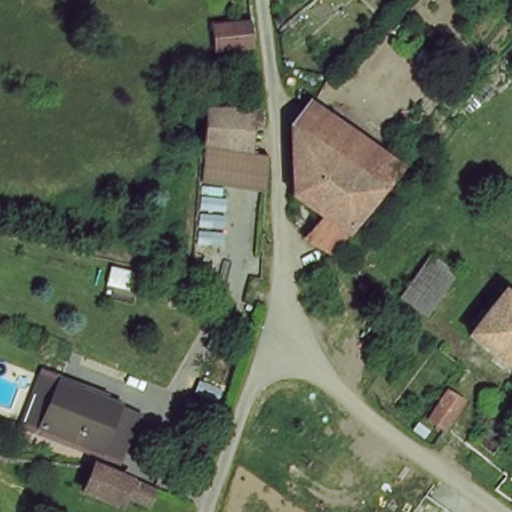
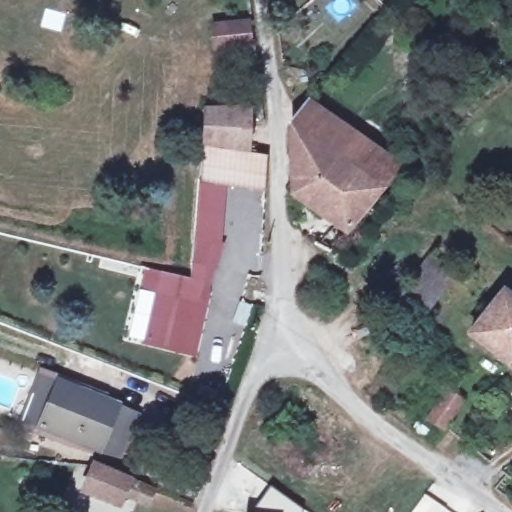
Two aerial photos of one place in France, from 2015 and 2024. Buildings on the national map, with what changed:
unchanged [(215,43),(215,19),(246,19),(250,40),(215,43)]
unchanged [(288,123),(307,96),(351,128),(317,176),(300,172),(290,185),(288,123)]
unchanged [(197,142),(203,106),(250,105),(253,144),(197,142)]
unchanged [(318,250),(305,240),(316,224),(319,220),(291,201),(290,185),(300,172),(317,176),(351,128),(395,160),(337,237),(325,255),(318,250)]
unchanged [(197,142),(253,144),(265,144),(270,145),(271,184),(192,180),(194,164),(197,142)]
new [(141,345),(153,294),(140,291),(145,270),(190,280),(200,180),(215,180),(207,240),(223,243),(210,285),(196,357),(141,345)]
demolished [(193,258),(202,260),(196,285),(180,282),(185,239),(195,240),(193,258)]
unchanged [(425,318),(397,297),(433,250),(458,270),(425,318)]
demolished [(155,289),(156,275),(171,280),(170,291),(155,289)]
unchanged [(500,285),(512,293),(512,375),(462,333),(500,285)]
unchanged [(35,427),(21,421),(25,410),(11,405),(23,380),(37,385),(40,375),(55,378),(120,403),(103,453),(35,427)]
unchanged [(446,427),(425,412),(445,385),(465,400),(446,427)]
unchanged [(512,391),(512,393),(511,392),(512,391)]
unchanged [(151,505),(121,494),(117,507),(79,494),(91,466),(157,490),(151,505)]
new [(301,510),(301,512),(252,512),(270,487),(301,510)]

